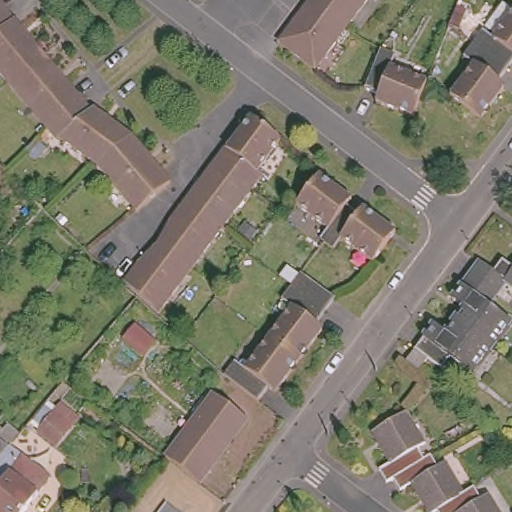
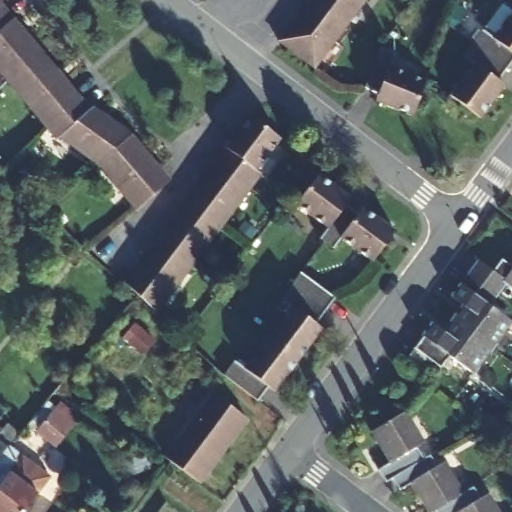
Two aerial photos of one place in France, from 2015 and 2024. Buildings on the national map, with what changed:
unchanged [(99,163),(51,127),(49,126),(11,81),(0,68),(0,0),(2,0),(5,9),(27,29),(46,51),(66,74),(82,99),(110,115),(134,135),(155,159),(164,169),(172,180),(138,209),(105,170),(99,163)]
unchanged [(307,0),(362,0),(344,24),(314,66),(277,40),(293,19),(307,0)]
unchanged [(490,93),(472,116),(442,94),(466,62),(456,55),(475,29),(485,36),(509,5),(512,7),(512,57),(508,54),(499,66),(490,79),(497,84),(490,93)]
unchanged [(387,97),(373,92),(388,52),(403,58),(398,71),(434,84),(421,120),(395,109),(385,105),(387,97)]
unchanged [(217,166),(226,154),(224,152),(227,149),(231,143),(249,121),(279,144),(256,175),(261,178),(250,192),(219,232),(212,240),(189,271),(154,316),(121,286),(134,269),(156,246),(173,219),(184,205),(196,190),(215,165),(217,166)]
unchanged [(388,236),(370,261),(340,238),(332,248),(322,240),(319,238),(327,228),(295,204),(318,173),(341,190),(350,196),(345,203),(357,213),(362,206),(385,223),(393,229),(388,236)]
unchanged [(502,278),(493,289),(484,301),(508,318),(489,343),(469,370),(447,353),(437,365),(424,354),(414,368),(402,359),(412,346),(430,322),(441,330),(462,303),(450,294),(468,271),(477,259),(490,268),(499,256),(511,265),(512,263),(512,285),(502,278)]
unchanged [(266,392),(256,406),(221,380),(232,366),(242,373),(266,342),(288,312),(277,304),(289,290),(298,277),(333,302),(322,316),(313,329),(320,334),(313,343),(297,365),(280,388),(272,397),(266,392)]
unchanged [(214,386),(247,412),(199,476),(172,455),(165,450),(214,386)]
unchanged [(78,420),(57,447),(32,428),(55,405),(78,420)]
unchanged [(392,478),(386,481),(378,469),(389,463),(370,431),(404,411),(423,442),(415,447),(422,460),(392,478)]
unchanged [(8,444),(13,448),(19,453),(46,474),(47,475),(34,492),(19,512),(0,512),(0,428),(12,439),(8,444)]
unchanged [(422,460),(430,456),(437,468),(444,464),(463,495),(436,511),(433,512),(427,512),(409,484),(399,490),(392,478),(422,460)]
unchanged [(436,511),(463,495),(474,489),(480,500),(488,496),(498,512),(437,512),(436,511)]

